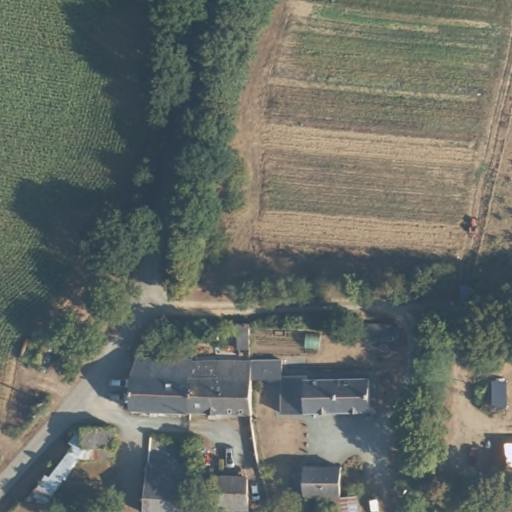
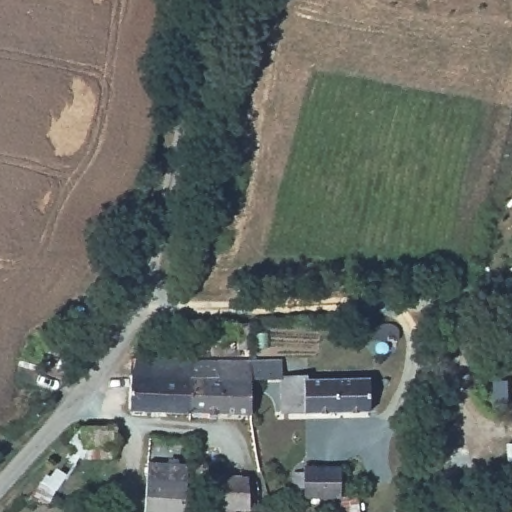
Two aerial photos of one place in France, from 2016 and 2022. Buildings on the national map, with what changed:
unchanged [(114,250),(107,273),(95,270),(100,245),(114,250)]
unchanged [(21,340),(44,343),(40,367),(17,365),(21,340)]
unchanged [(185,410),(127,410),(127,372),(152,372),(152,356),(186,356),(185,410)]
unchanged [(280,378),(248,378),(247,410),(185,410),(186,356),(280,356),(280,378)]
unchanged [(281,376),(305,375),(305,381),(370,380),(369,413),(282,415),(281,376)]
unchanged [(81,456),(52,503),(28,497),(80,420),(118,423),(116,456),(81,456)]
unchanged [(191,508),(190,512),(170,512),(171,507),(149,506),(148,461),(190,461),(191,508)]
unchanged [(344,493),(361,491),(363,512),(332,512),(331,497),(302,497),(303,462),(343,463),(344,493)]
unchanged [(217,472),(249,473),(249,495),(239,495),(237,512),(234,512),(217,509),(217,472)]

